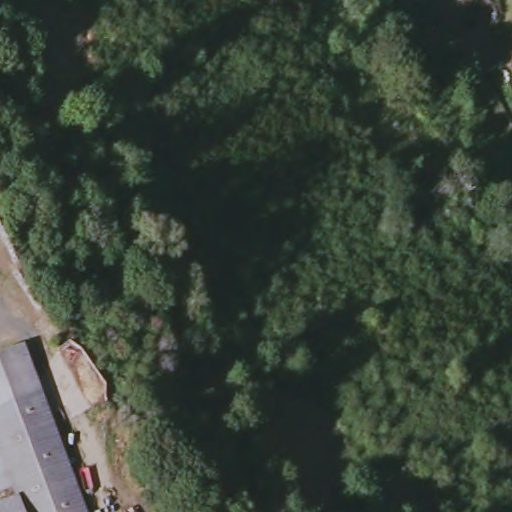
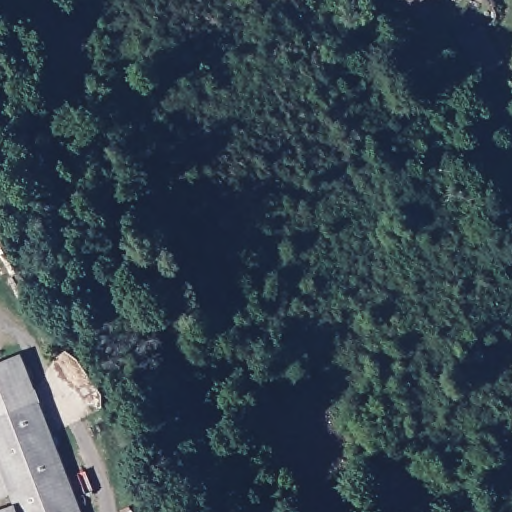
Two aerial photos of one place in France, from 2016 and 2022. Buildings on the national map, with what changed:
unchanged [(404,0),(434,0),(414,13),(404,0)]
unchanged [(480,16),(504,50),(476,66),(455,32),(480,16)]
unchanged [(15,505),(12,493),(0,497),(0,362),(22,354),(83,512),(18,512),(15,505)]
unchanged [(18,512),(0,512),(0,510),(15,505),(18,512)]

